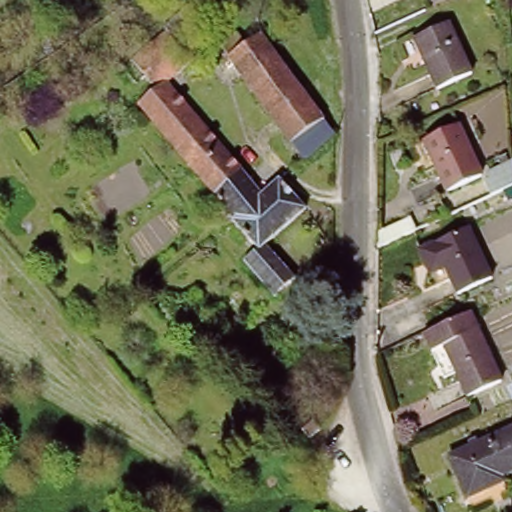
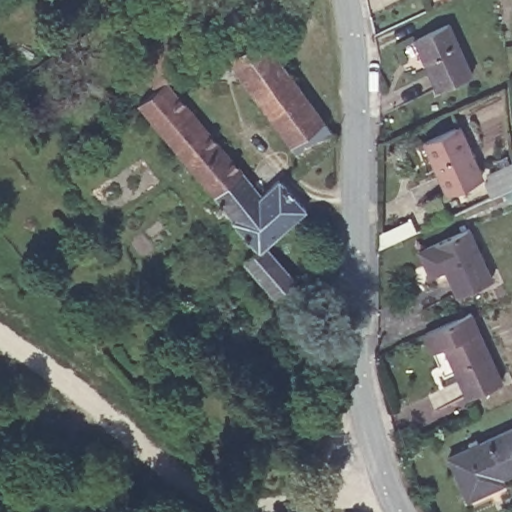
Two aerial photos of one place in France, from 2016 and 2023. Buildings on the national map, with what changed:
unchanged [(258,255),(241,234),(215,200),(140,112),(157,97),(146,85),(138,91),(125,75),(133,69),(175,35),(171,31),(198,9),(215,30),(223,41),(221,43),(172,84),(195,113),(267,197),(285,181),(311,211),(271,246),(301,282),(280,300),(249,263),(258,255)]
unchanged [(472,73),(437,89),(415,39),(450,23),(472,73)]
unchanged [(227,49),(229,47),(233,42),(240,37),(243,34),(252,47),(267,36),(298,81),(331,124),(339,135),(310,162),(227,49)]
unchanged [(477,165),(442,182),(418,131),(455,114),(477,165)]
unchanged [(485,185),(479,171),(485,168),(482,162),(510,150),(512,167),(512,173),(485,185)]
unchanged [(491,278),(456,293),(445,268),(430,274),(418,251),(469,228),(491,278)]
unchanged [(470,307),(502,376),(468,391),(445,343),(433,348),(425,328),(470,307)]
unchanged [(330,405),(337,414),(328,422),(320,413),(330,405)]
unchanged [(488,488),(468,498),(448,456),(512,428),(512,470),(503,474),(505,481),(488,488)]

